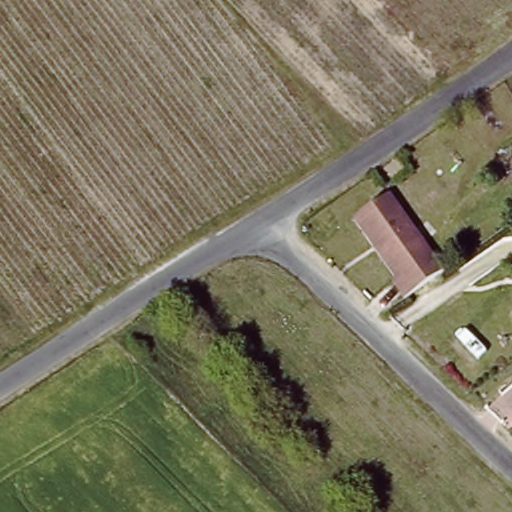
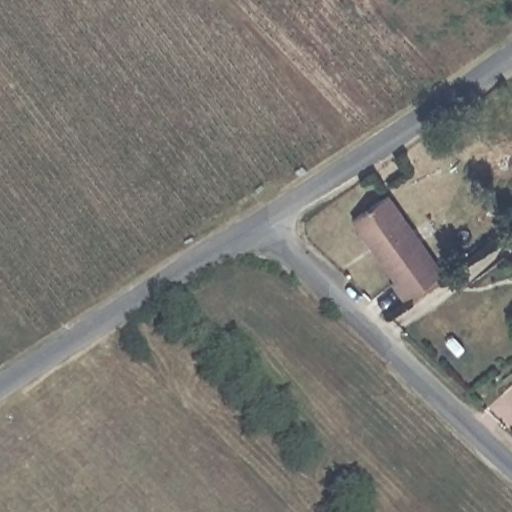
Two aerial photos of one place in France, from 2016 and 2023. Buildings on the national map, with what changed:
unchanged [(397,285),(400,282),(358,223),(392,199),(445,275),(408,302),(397,285)]

